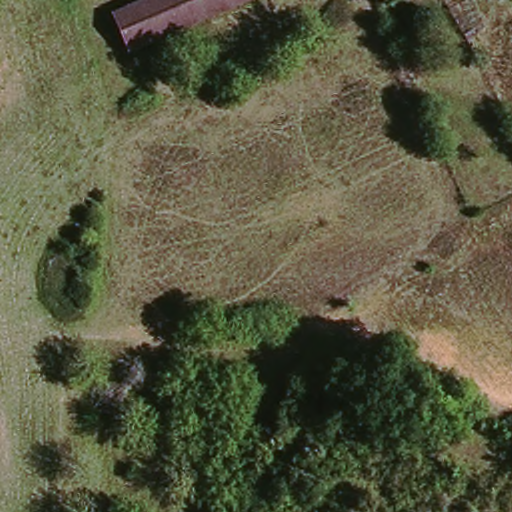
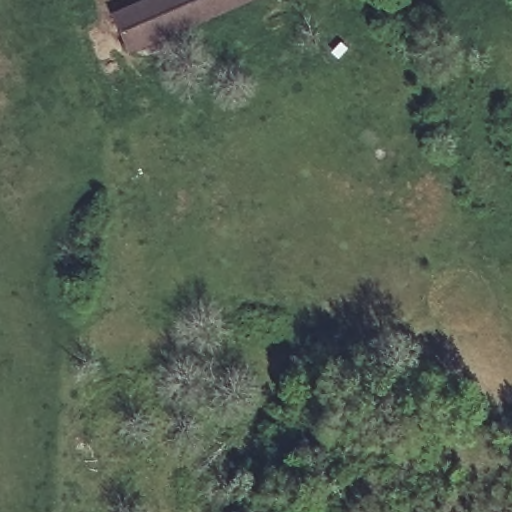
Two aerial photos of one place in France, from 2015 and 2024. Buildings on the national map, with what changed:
unchanged [(108,2),(113,0),(267,0),(269,4),(131,59),(108,2)]

